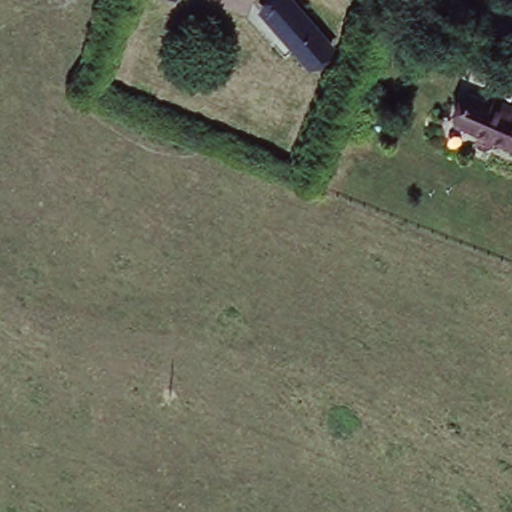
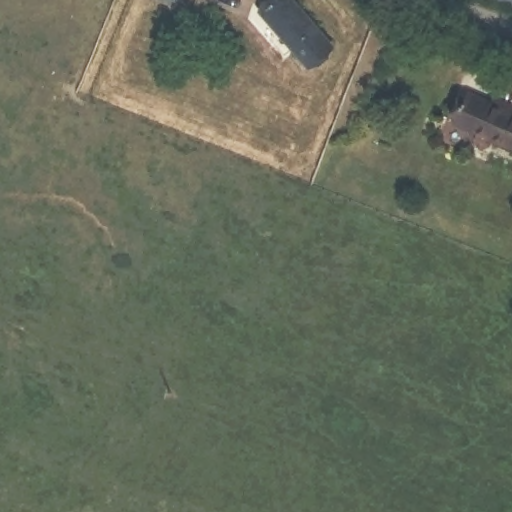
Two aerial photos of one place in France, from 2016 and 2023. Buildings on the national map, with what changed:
unchanged [(181,0),(179,4),(169,0),(181,0)]
unchanged [(307,67),(259,14),(274,0),(286,0),(329,47),(307,67)]
unchanged [(447,125),(457,100),(483,109),(486,104),(512,115),(512,141),(508,149),(447,125)]
unchanged [(512,141),(512,150),(508,149),(512,141)]

